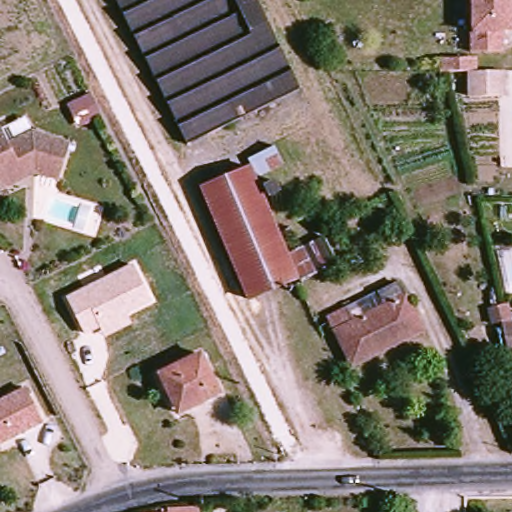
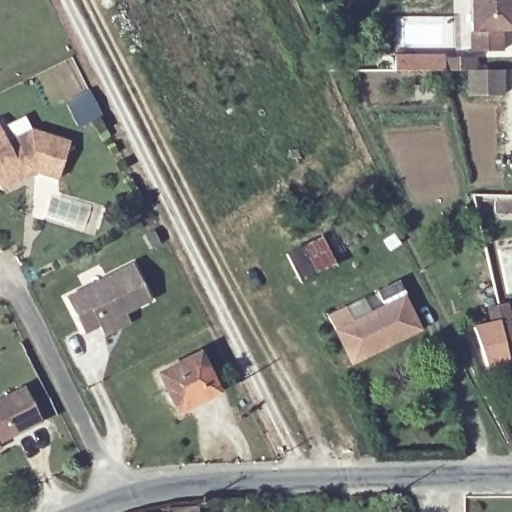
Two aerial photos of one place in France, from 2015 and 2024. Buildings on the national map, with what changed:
demolished [(186,139),(118,0),(256,0),(299,90),(186,139)]
unchanged [(504,50),(474,51),(473,0),(512,0),(512,30),(503,30),(504,50)]
unchanged [(468,94),(468,68),(504,70),(505,94),(468,94)]
unchanged [(87,95),(100,115),(80,125),(69,104),(87,95)]
unchanged [(27,130),(67,141),(55,179),(30,171),(0,188),(0,133),(4,143),(27,130)]
demolished [(246,173),(242,163),(267,151),(277,171),(263,179),(273,198),(262,203),(246,173)]
unchanged [(298,275),(287,254),(321,238),(335,267),(301,282),(298,275)]
unchanged [(152,301),(126,314),(130,323),(104,335),(100,328),(85,335),(66,297),(133,263),(152,301)]
unchanged [(418,335),(350,368),(327,319),(395,285),(418,335)]
unchanged [(512,323),(512,350),(505,349),(498,323),(512,323)]
unchanged [(215,394),(177,412),(159,373),(197,353),(215,394)]
unchanged [(0,440),(0,397),(24,384),(42,419),(0,440)]
unchanged [(0,446),(1,449),(0,450),(0,446)]
unchanged [(197,512),(167,512),(167,509),(197,509),(197,512)]

